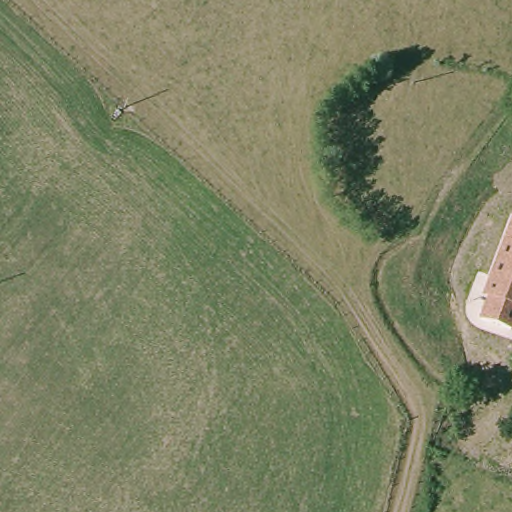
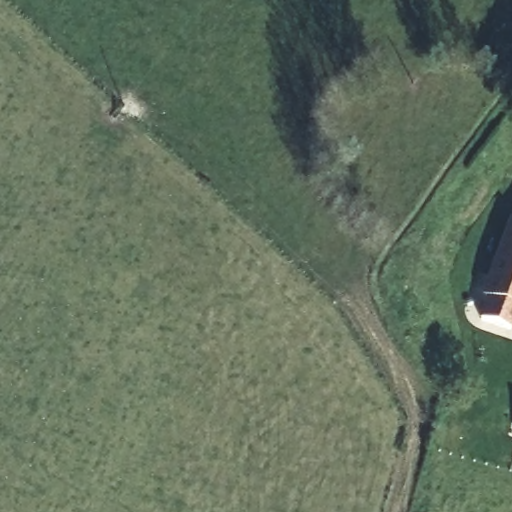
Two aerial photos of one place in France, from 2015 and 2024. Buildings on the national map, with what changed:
unchanged [(512,329),(480,318),(487,297),(483,295),(504,240),(511,218),(512,218),(512,329)]

